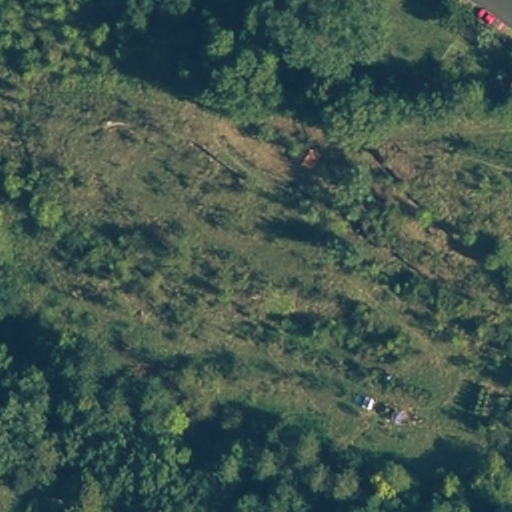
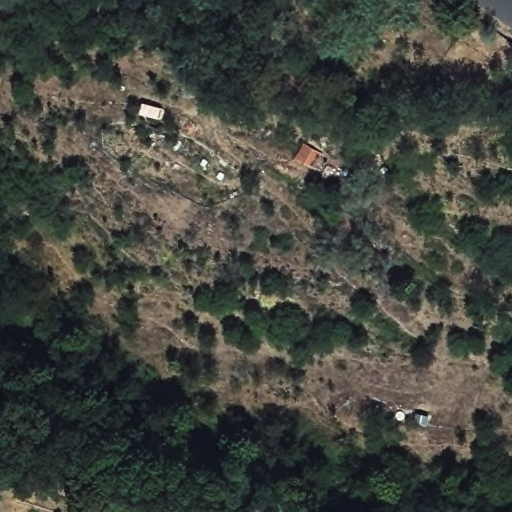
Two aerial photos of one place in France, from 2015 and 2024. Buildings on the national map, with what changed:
unchanged [(329,152),(318,169),(297,158),(305,140),(329,152)]

